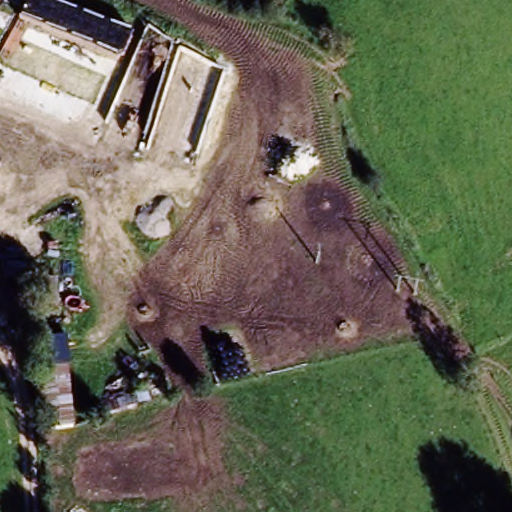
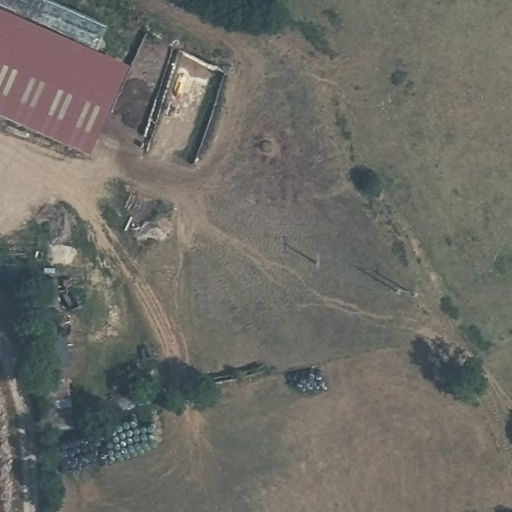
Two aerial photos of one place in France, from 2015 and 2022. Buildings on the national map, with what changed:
new [(129,68),(90,155),(0,116),(0,10),(129,68)]

